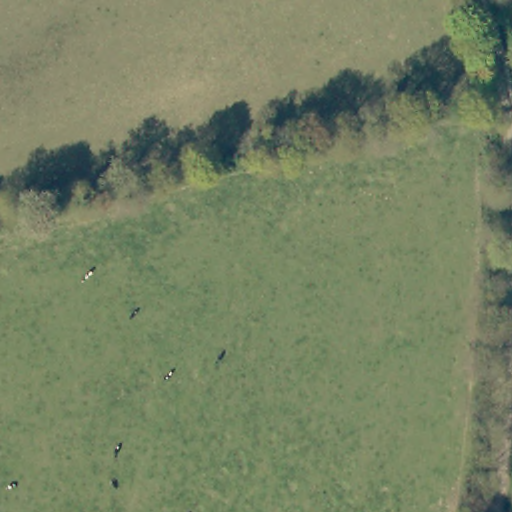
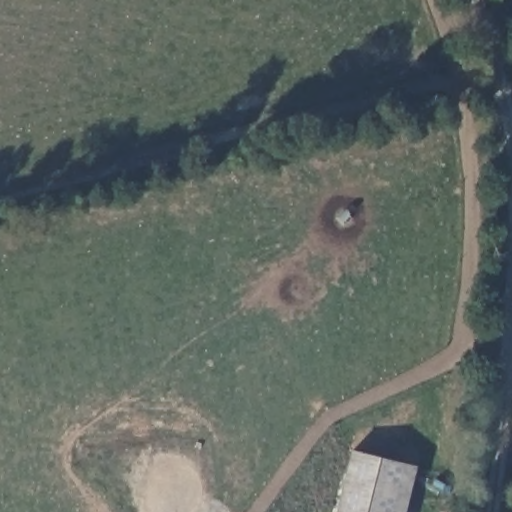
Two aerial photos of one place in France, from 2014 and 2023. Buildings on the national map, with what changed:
new [(335,512),(350,449),(418,464),(407,512),(335,512)]

